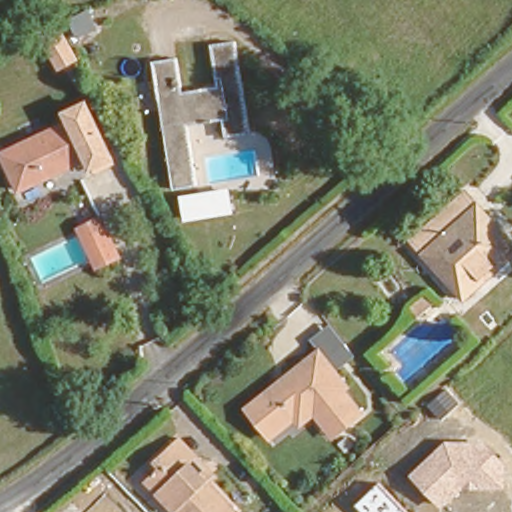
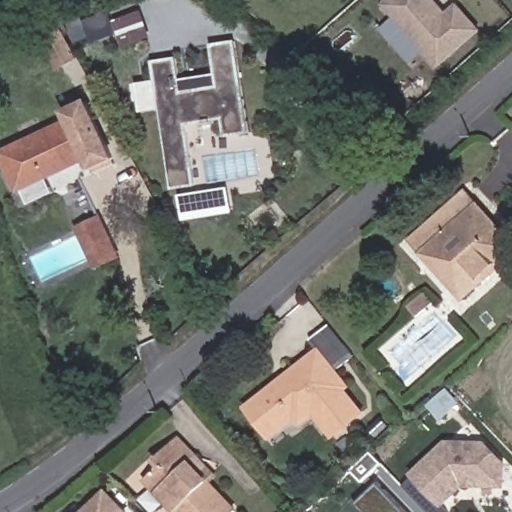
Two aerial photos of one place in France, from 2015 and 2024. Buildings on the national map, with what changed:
new [(439,68),(382,4),(387,0),(437,0),(447,11),(458,2),(482,29),(439,68)]
unchanged [(83,38),(72,20),(88,11),(98,28),(83,38)]
unchanged [(56,74),(33,34),(58,20),(84,61),(56,74)]
unchanged [(177,54),(181,89),(214,83),(206,38),(235,33),(250,127),(221,133),(218,110),(185,117),(196,185),(166,190),(148,60),(177,54)]
unchanged [(99,160),(25,189),(7,151),(78,119),(72,104),(89,97),(119,162),(102,169),(99,160)]
unchanged [(408,232),(461,186),(474,200),(463,210),(482,230),(492,219),(512,243),(512,246),(466,293),(408,232)]
unchanged [(232,217),(185,222),(180,197),(231,189),(232,217)]
unchanged [(93,272),(74,227),(105,215),(123,259),(93,272)]
unchanged [(347,390),(366,415),(334,440),(313,416),(299,427),(294,421),(271,439),(244,406),(316,348),(310,341),(329,326),(356,357),(340,370),(352,386),(347,390)]
unchanged [(181,512),(148,476),(162,463),(154,454),(179,431),(199,452),(215,469),(205,479),(233,509),(230,512),(181,512)]
unchanged [(506,488),(464,488),(443,507),(411,474),(446,440),(485,440),(506,464),(506,488)]
unchanged [(378,483),(406,512),(364,512),(357,504),(378,483)]
new [(129,512),(81,512),(105,488),(129,512)]

